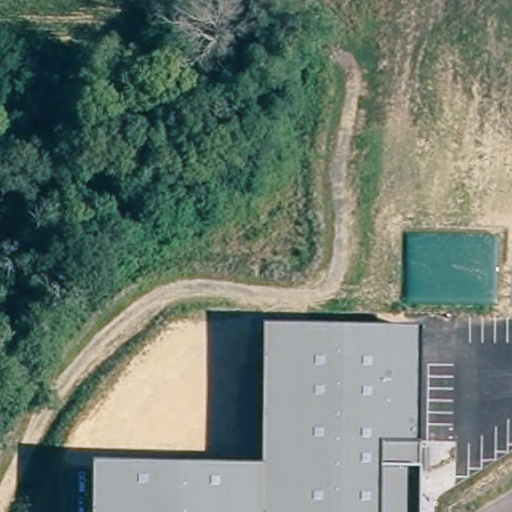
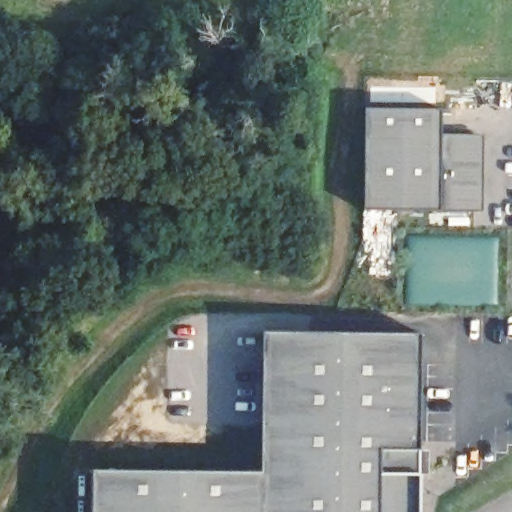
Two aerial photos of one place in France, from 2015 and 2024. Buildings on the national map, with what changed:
new [(443,109),(443,134),(486,134),(485,210),(442,208),(367,206),(368,110),(443,109)]
unchanged [(91,469),(262,471),(262,331),(421,332),(419,512),(91,512),(91,469)]

